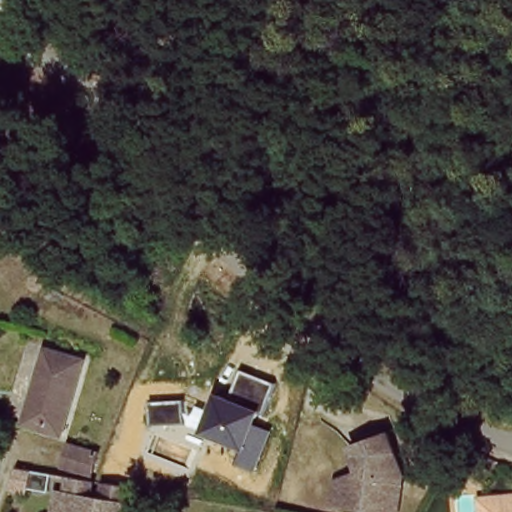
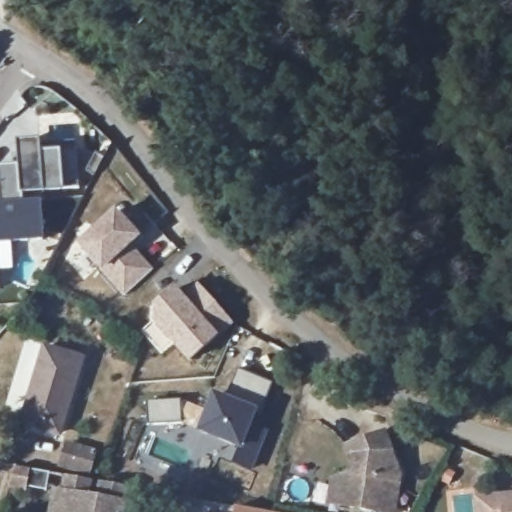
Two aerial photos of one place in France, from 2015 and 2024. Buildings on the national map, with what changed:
new [(23,200),(0,202),(0,200),(0,201),(0,167),(18,167),(17,143),(39,142),(76,143),(80,188),(23,194),(23,200)]
new [(101,272),(77,245),(116,210),(141,238),(132,245),(154,269),(123,298),(101,272)]
new [(198,279),(235,322),(219,336),(182,292),(198,279)]
new [(151,320),(145,311),(176,285),(182,292),(219,336),(188,363),(172,345),(160,355),(140,330),(151,320)]
unchanged [(43,351),(78,363),(54,432),(18,419),(43,351)]
unchanged [(182,400),(184,414),(195,415),(198,404),(205,407),(213,392),(230,399),(243,371),(275,385),(265,414),(257,412),(253,423),(272,431),(255,473),(235,466),(241,451),(185,424),(149,425),(150,401),(182,400)]
unchanged [(392,507),(350,500),(338,497),(342,476),(355,470),(365,467),(357,441),(364,438),(395,427),(407,463),(410,470),(408,477),(402,509),(392,507)]
unchanged [(75,452),(101,461),(95,480),(68,471),(75,452)]
unchanged [(55,481),(64,482),(127,492),(124,512),(50,512),(55,481)]
unchanged [(495,496),(512,495),(512,512),(496,512),(495,496)]

